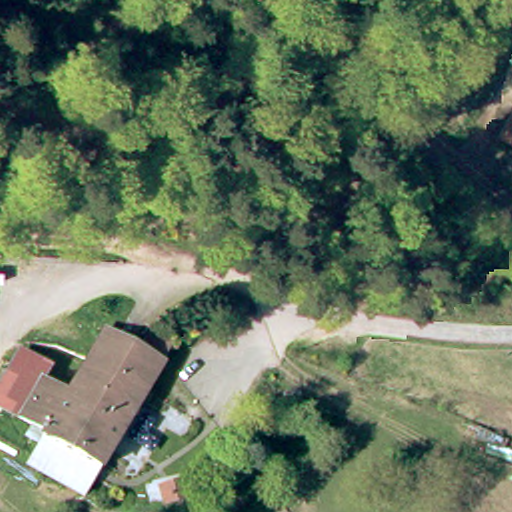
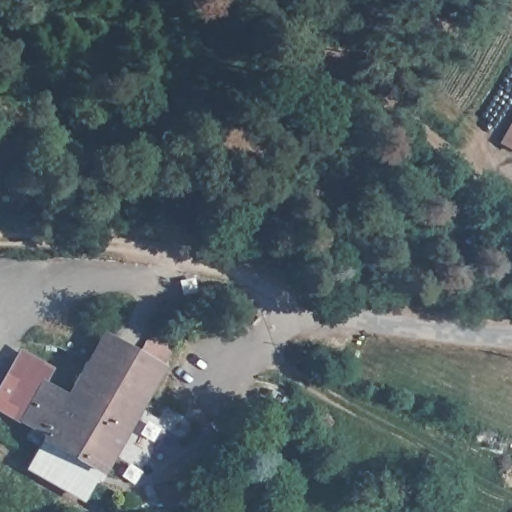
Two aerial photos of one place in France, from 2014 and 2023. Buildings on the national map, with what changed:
unchanged [(507,149),(512,141),(512,151),(507,149)]
unchanged [(165,360),(144,401),(152,406),(145,421),(135,416),(101,476),(44,444),(26,433),(32,419),(17,411),(40,373),(45,376),(67,388),(103,326),(165,360)]
unchanged [(45,376),(40,373),(17,411),(32,419),(26,433),(0,419),(0,379),(20,345),(53,363),(45,376)]
unchanged [(101,476),(86,502),(29,471),(44,444),(101,476)]

